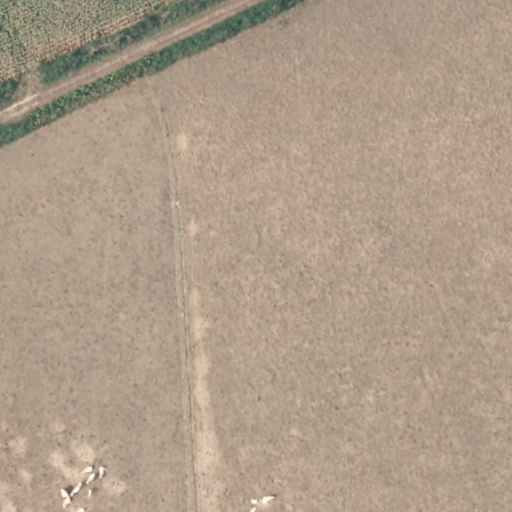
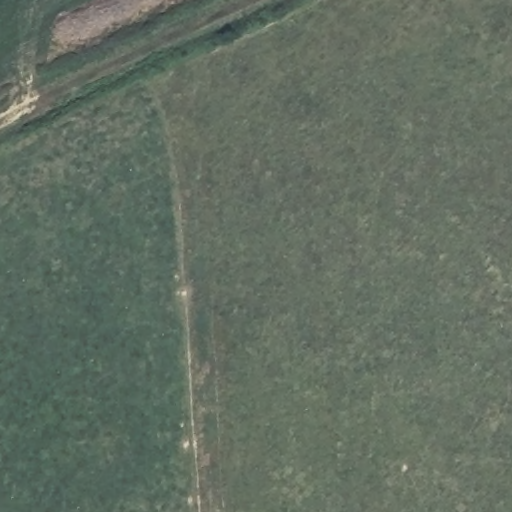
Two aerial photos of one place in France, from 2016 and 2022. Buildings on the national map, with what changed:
[]

